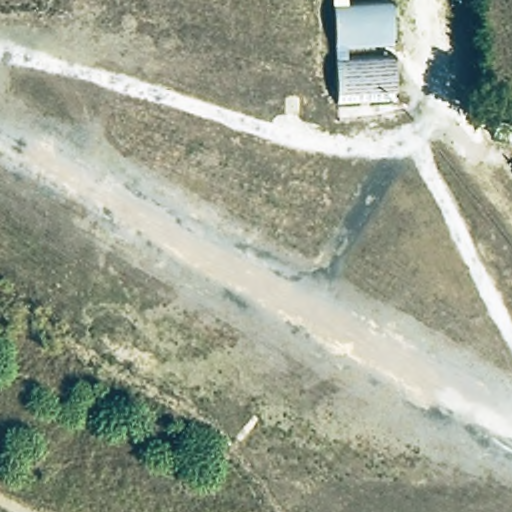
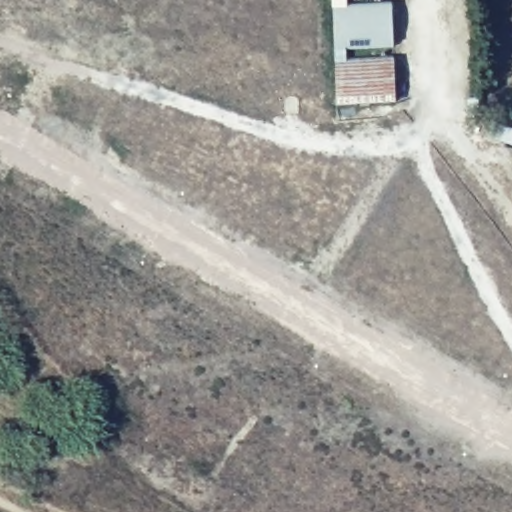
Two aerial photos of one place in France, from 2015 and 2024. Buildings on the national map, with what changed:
unchanged [(331,0),(353,0),(331,2),(331,0)]
unchanged [(394,9),(394,49),(333,51),(333,10),(394,9)]
unchanged [(397,61),(398,99),(337,104),(335,64),(397,61)]

